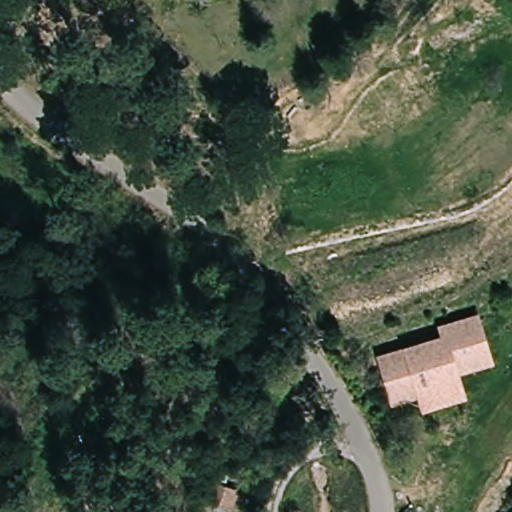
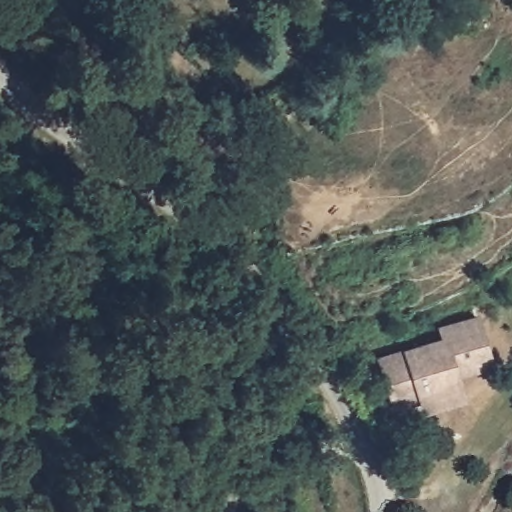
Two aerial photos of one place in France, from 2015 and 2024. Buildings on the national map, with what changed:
unchanged [(459,377),(468,400),(420,414),(416,398),(392,406),(375,357),(397,350),(439,337),(437,327),(479,314),(496,365),(459,377)]

